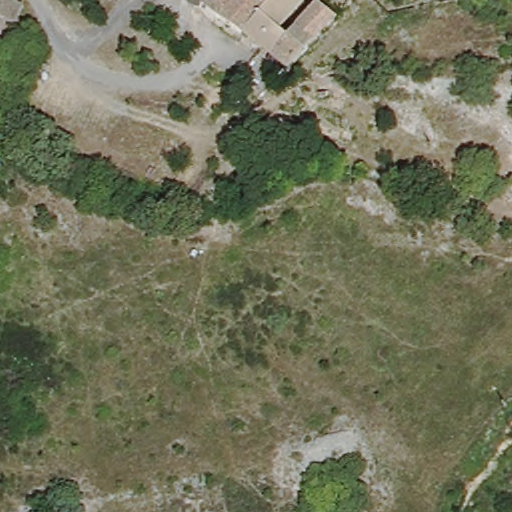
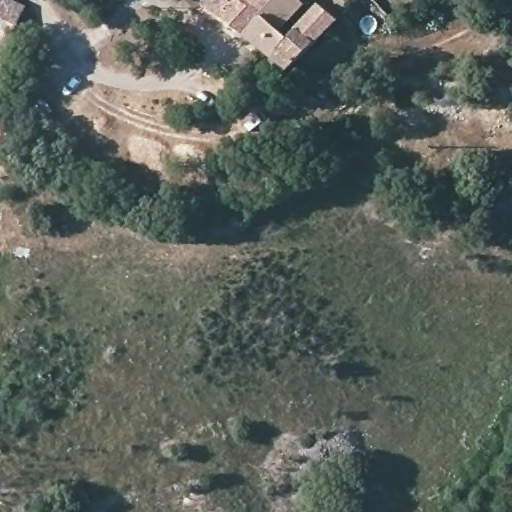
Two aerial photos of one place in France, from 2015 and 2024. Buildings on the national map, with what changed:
unchanged [(0,57),(0,0),(9,0),(22,5),(0,57)]
unchanged [(240,33),(198,0),(272,0),(240,33)]
unchanged [(240,33),(272,0),(296,0),(301,4),(259,49),(240,33)]
unchanged [(346,8),(336,0),(353,0),(346,8)]
unchanged [(285,70),(267,56),(315,4),(333,20),(297,60),(285,70)]

